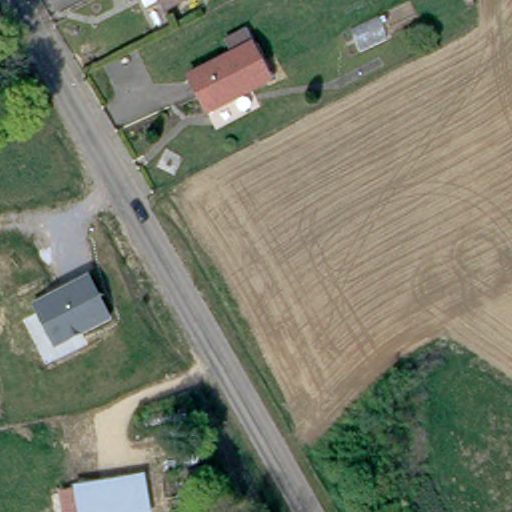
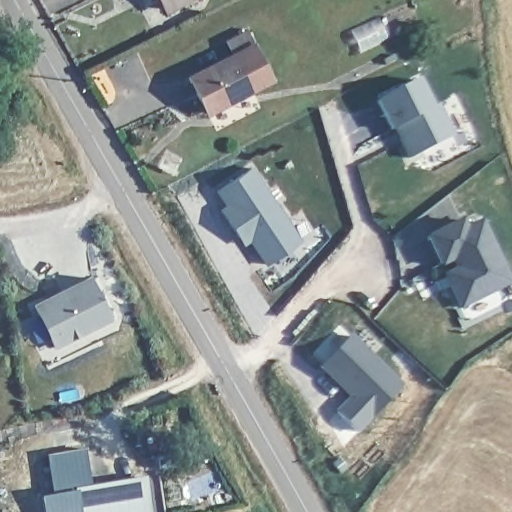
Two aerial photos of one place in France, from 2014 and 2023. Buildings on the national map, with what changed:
unchanged [(163,0),(180,0),(166,6),(163,0)]
unchanged [(269,81),(204,111),(188,76),(253,48),(269,81)]
new [(439,104),(454,136),(409,159),(394,128),(390,130),(376,101),(419,78),(434,106),(439,104)]
new [(218,208),(224,205),(214,190),(251,166),(302,240),(266,266),(249,241),(243,245),(218,208)]
new [(464,228),(481,220),(512,285),(460,310),(443,274),(454,270),(452,263),(441,268),(424,236),(460,218),(464,228)]
unchanged [(53,345),(33,303),(89,274),(112,321),(53,345)]
new [(399,383),(356,426),(339,409),(351,397),(344,390),(349,386),(325,363),(350,337),(399,383)]
unchanged [(143,476),(147,512),(80,512),(77,481),(143,476)]

